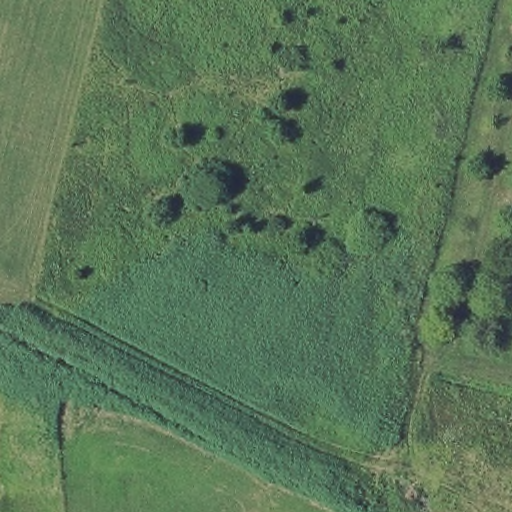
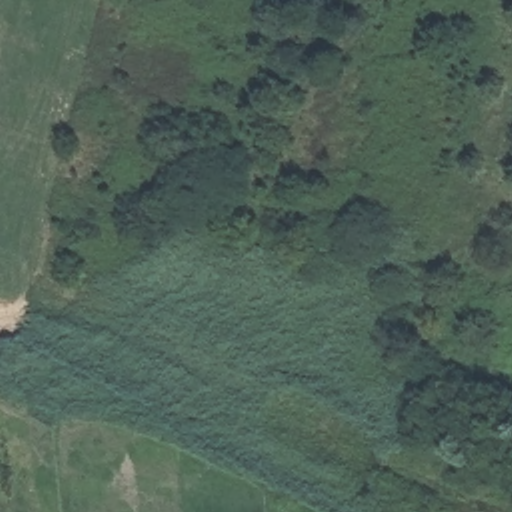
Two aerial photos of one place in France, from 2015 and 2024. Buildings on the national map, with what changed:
[]

